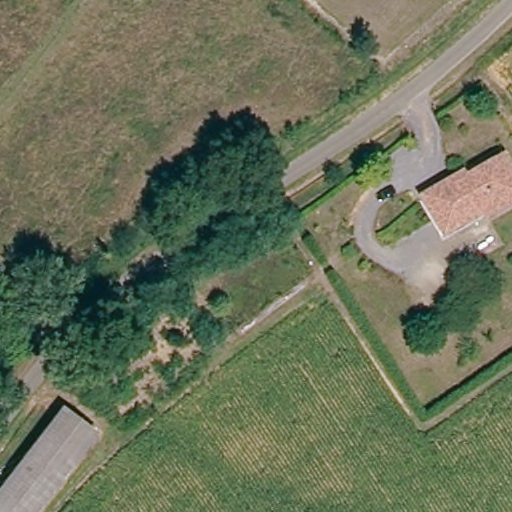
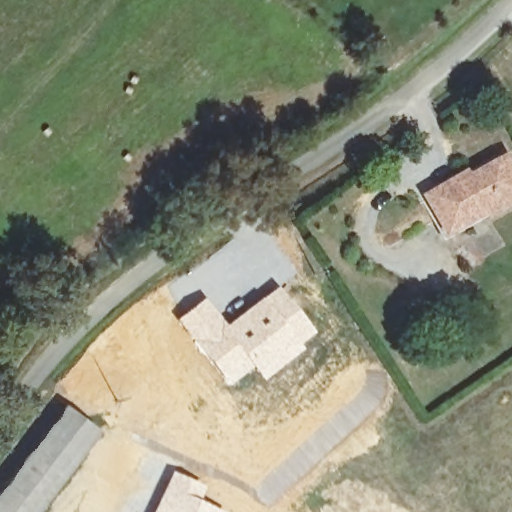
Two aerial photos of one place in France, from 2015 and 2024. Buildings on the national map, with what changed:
unchanged [(426,204),(446,191),(443,186),(460,175),(464,179),(499,156),(512,175),(512,204),(488,219),(484,214),(467,224),(447,237),(438,222),(426,204)]
new [(204,297),(225,323),(276,285),(313,333),(259,381),(249,368),(226,386),(175,319),(204,297)]
unchanged [(97,430),(89,442),(38,512),(0,512),(0,498),(57,419),(65,408),(97,430)]
new [(203,487),(196,501),(218,512),(151,512),(171,471),(203,487)]

